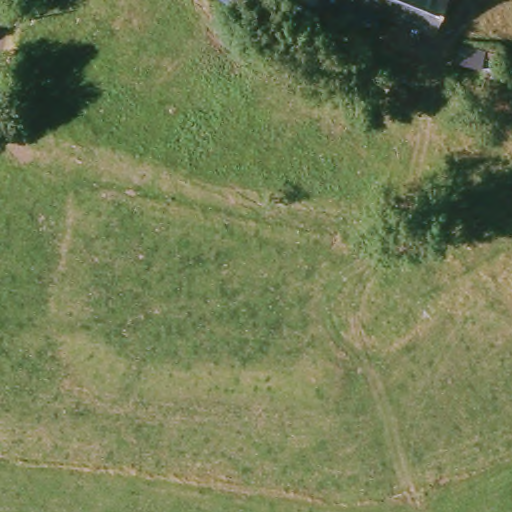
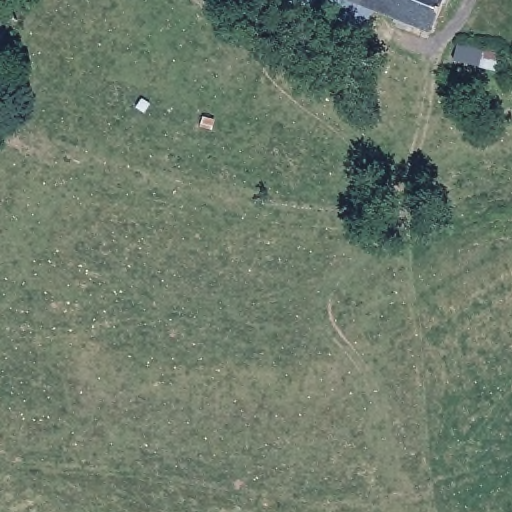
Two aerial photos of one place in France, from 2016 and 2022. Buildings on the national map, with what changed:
unchanged [(229,0),(238,0),(235,4),(229,0)]
unchanged [(425,31),(369,7),(358,30),(289,0),(440,0),(425,31)]
unchanged [(487,77),(446,67),(450,53),(476,59),(476,56),(491,59),(487,77)]

